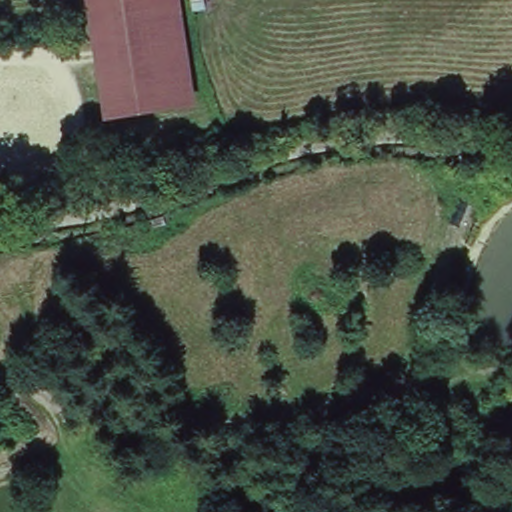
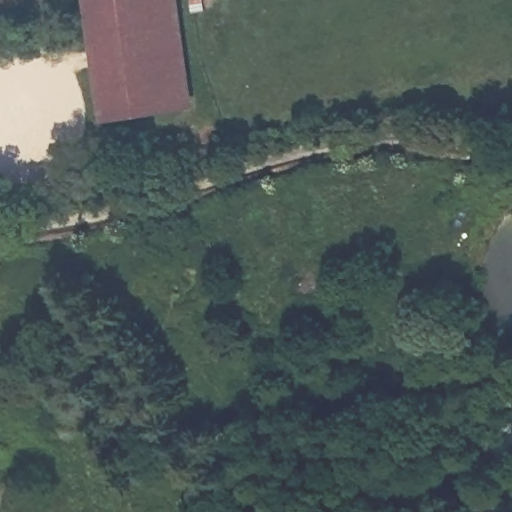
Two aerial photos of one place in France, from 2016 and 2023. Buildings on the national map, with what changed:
unchanged [(106,109),(90,0),(181,0),(198,100),(106,109)]

